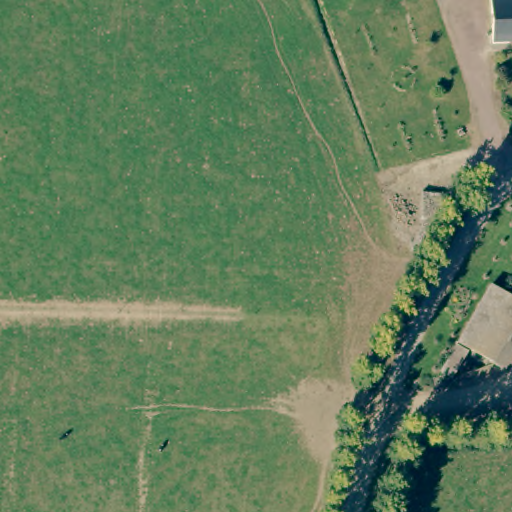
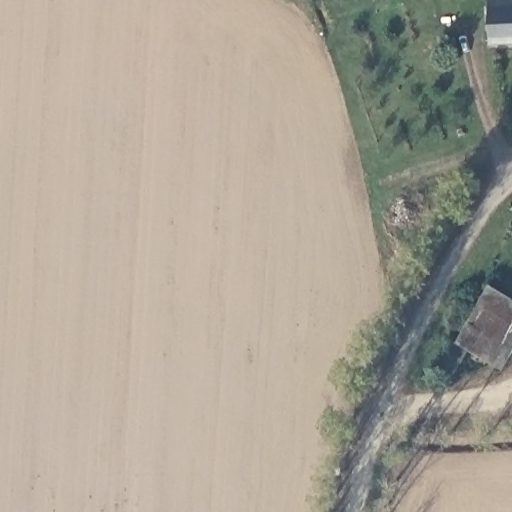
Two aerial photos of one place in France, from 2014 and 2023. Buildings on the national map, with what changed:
unchanged [(491,1),(508,0),(512,0),(512,52),(492,52),(491,1)]
unchanged [(456,342),(479,304),(490,286),(512,299),(512,364),(508,370),(456,342)]
unchanged [(449,379),(437,373),(454,346),(465,352),(449,379)]

